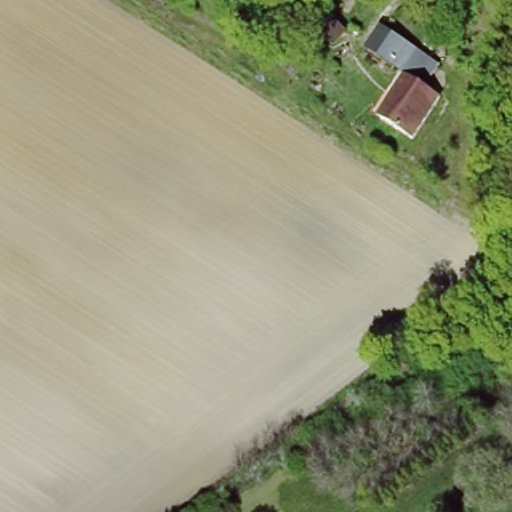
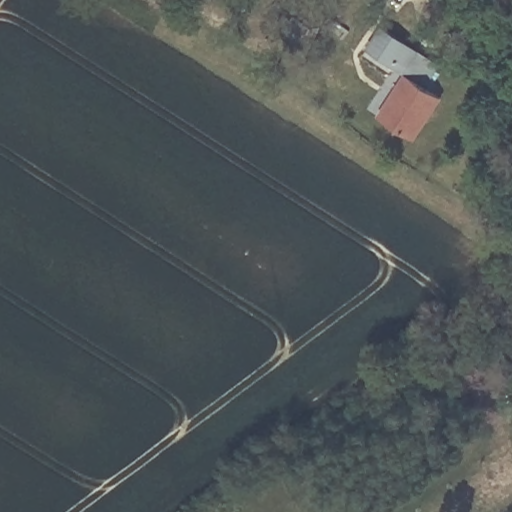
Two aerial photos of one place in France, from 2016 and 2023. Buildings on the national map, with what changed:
unchanged [(441,63),(426,88),(441,96),(414,139),(376,113),(402,71),(364,47),(380,25),(441,63)]

